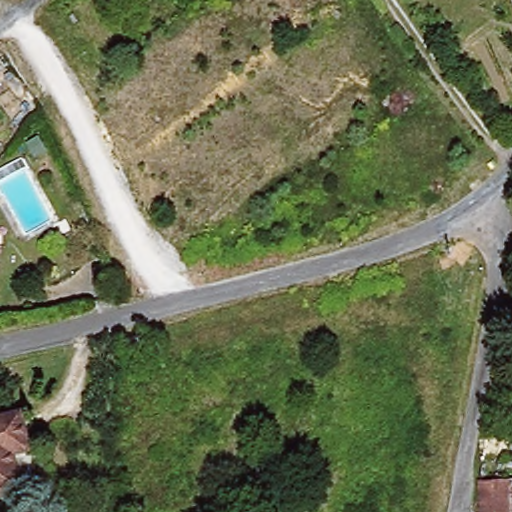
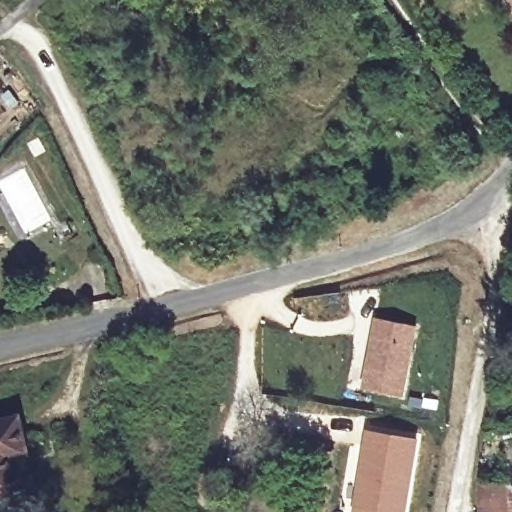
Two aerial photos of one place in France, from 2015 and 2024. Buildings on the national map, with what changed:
new [(373,316),(417,325),(402,397),(359,389),(373,316)]
unchanged [(13,444),(23,489),(0,494),(0,416),(23,411),(30,440),(13,444)]
new [(418,438),(408,512),(347,512),(362,428),(418,438)]
unchanged [(482,512),(483,481),(483,480),(512,481),(512,512),(482,512)]

